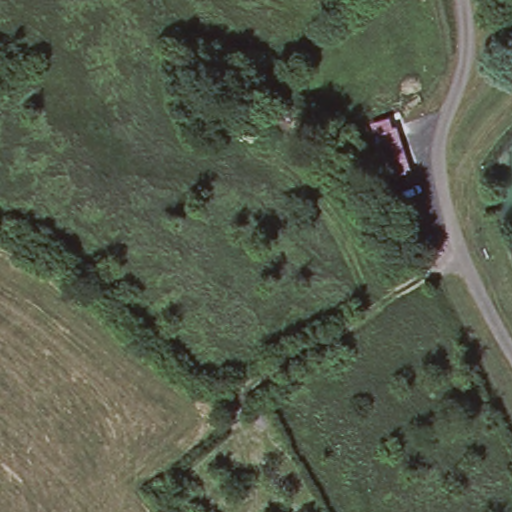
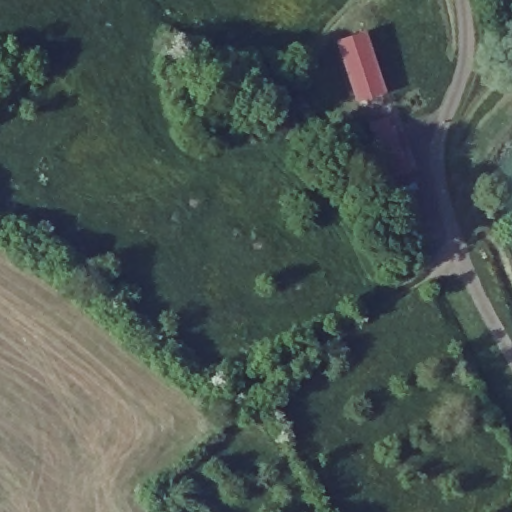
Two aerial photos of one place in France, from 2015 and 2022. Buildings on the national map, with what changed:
new [(370,32),(389,94),(360,103),(338,41),(370,32)]
unchanged [(393,126),(404,157),(388,162),(377,131),(393,126)]

